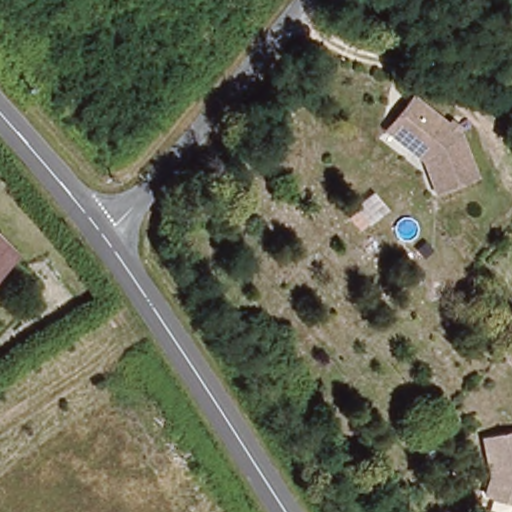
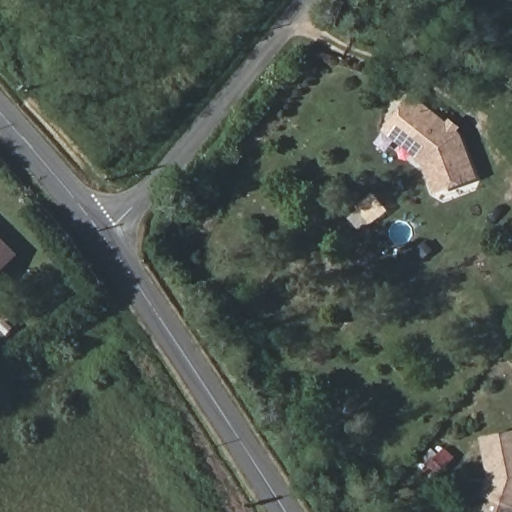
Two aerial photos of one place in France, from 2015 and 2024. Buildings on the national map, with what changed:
unchanged [(382,124),(393,112),(412,90),(456,126),(473,175),(433,189),(421,155),(382,124)]
unchanged [(0,274),(0,237),(4,240),(19,252),(0,274)]
unchanged [(486,472),(478,437),(512,428),(512,504),(479,492),(486,472)]

